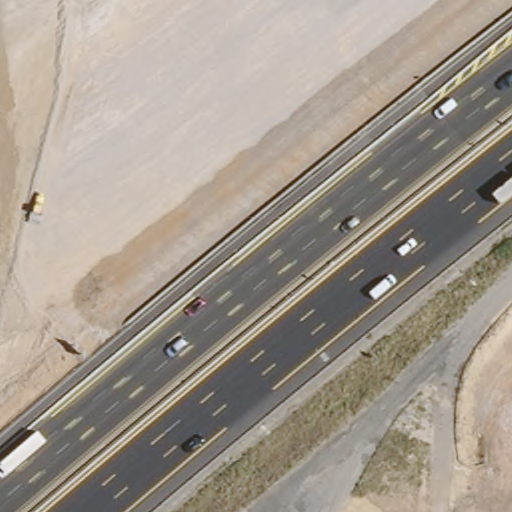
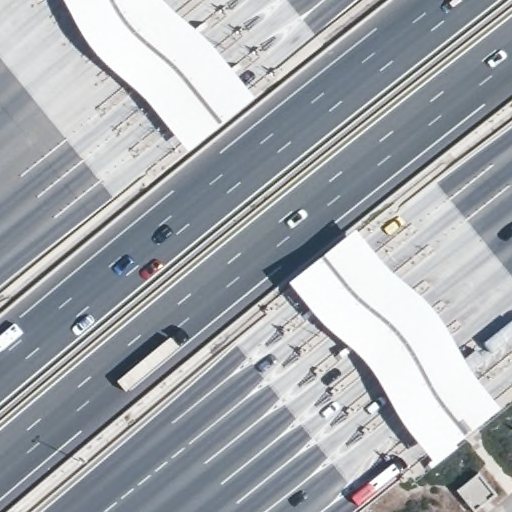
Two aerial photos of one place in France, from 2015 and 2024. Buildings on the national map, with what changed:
new [(200,38),(228,70),(256,104),(191,156),(137,97),(106,70),(80,37),(63,4),(60,0),(158,0),(170,11),(200,38)]
new [(382,268),(405,286),(430,311),(440,322),(454,349),(475,382),(498,409),(432,463),(409,443),(393,414),(379,388),(361,365),(343,345),(306,316),(287,288),(353,234),(382,268)]

